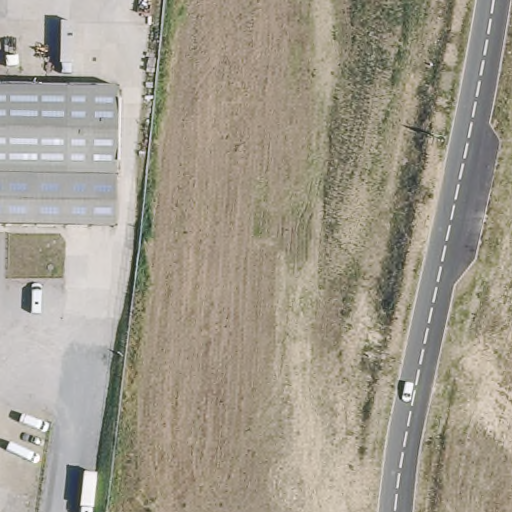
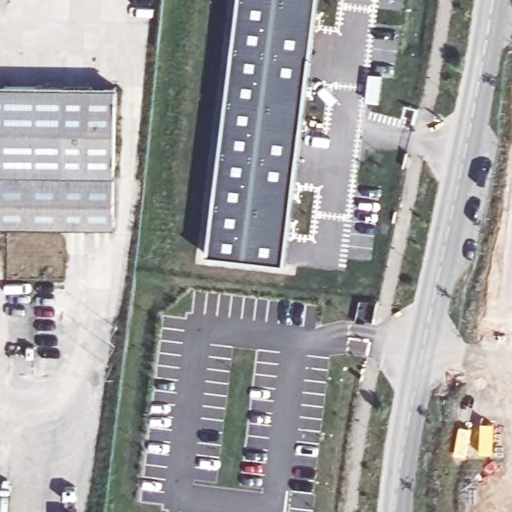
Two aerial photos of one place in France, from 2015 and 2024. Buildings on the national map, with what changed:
new [(282,262),(202,253),(235,0),(314,0),(282,262)]
unchanged [(118,225),(0,223),(0,82),(120,83),(118,225)]

